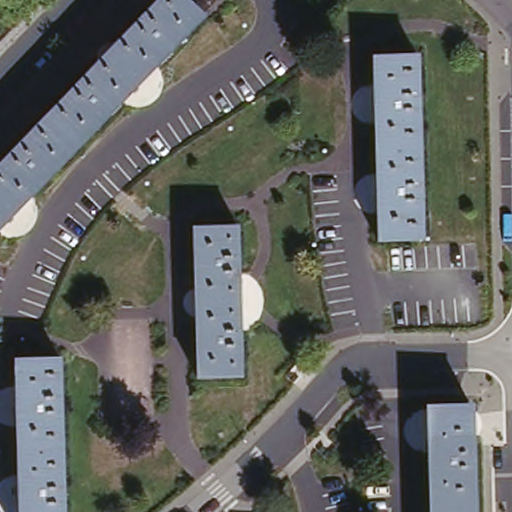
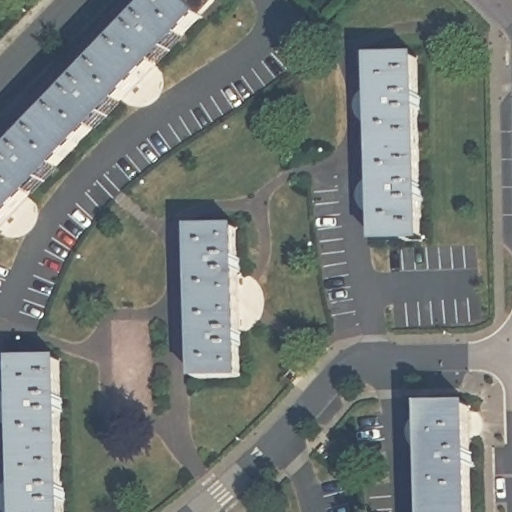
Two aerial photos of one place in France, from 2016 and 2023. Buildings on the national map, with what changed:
unchanged [(187,6),(193,0),(211,0),(217,5),(202,20),(203,21),(163,63),(130,98),(18,215),(0,234),(0,173),(166,0),(181,0),(187,6)]
unchanged [(428,243),(386,244),(384,198),(382,102),(380,64),(422,63),(428,243)]
unchanged [(244,257),(247,349),(247,381),(205,382),(202,233),(244,232),(244,257)]
unchanged [(65,512),(22,512),(22,499),(19,402),(19,361),(61,360),(65,512)]
unchanged [(475,512),(431,512),(428,407),(472,405),(474,483),(475,512)]

